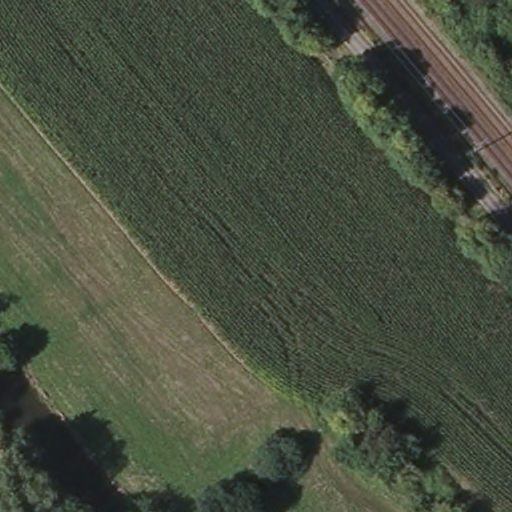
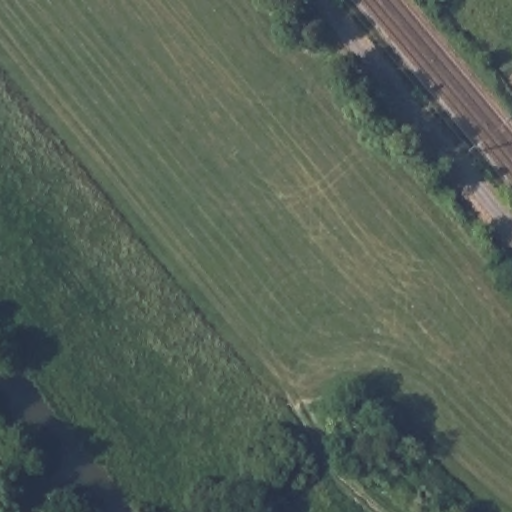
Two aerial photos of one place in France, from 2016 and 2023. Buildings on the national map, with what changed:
[]

